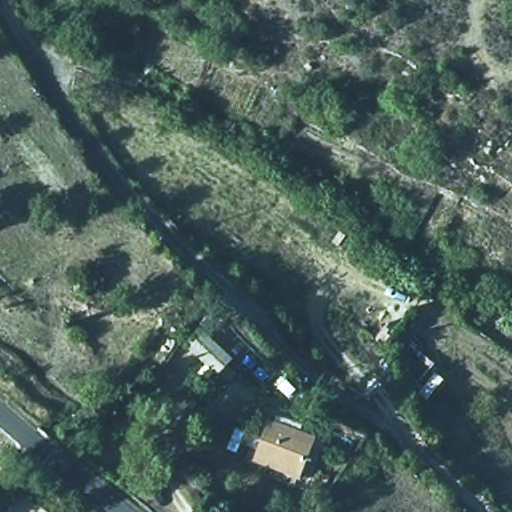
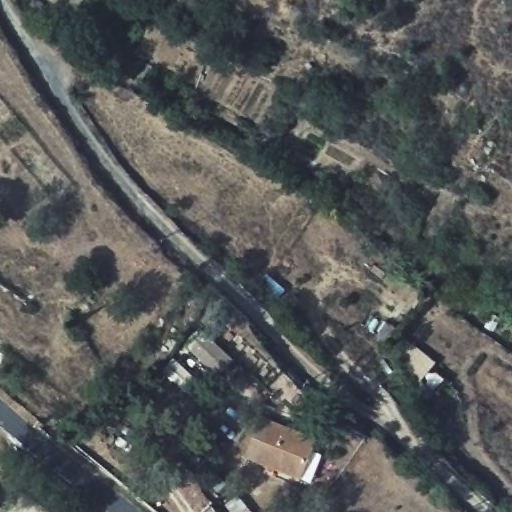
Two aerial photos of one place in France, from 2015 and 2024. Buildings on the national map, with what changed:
unchanged [(239,356),(222,374),(190,343),(205,327),(239,356)]
unchanged [(301,474),(252,459),(267,418),(315,434),(301,474)]

